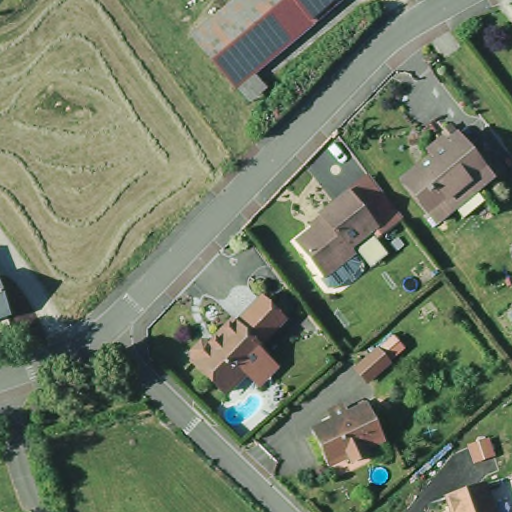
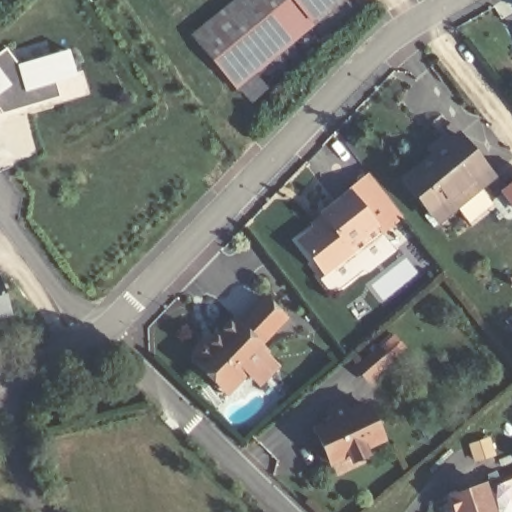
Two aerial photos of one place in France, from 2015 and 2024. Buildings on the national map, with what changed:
unchanged [(240,86),(198,37),(243,0),(344,0),(240,86)]
new [(0,123),(0,54),(6,50),(17,65),(70,50),(77,74),(83,71),(89,94),(7,118),(0,123)]
unchanged [(460,204),(439,220),(407,179),(441,153),(436,147),(452,135),(457,141),(465,135),(479,151),(490,165),(497,175),(460,204)]
new [(370,172),(405,217),(385,233),(378,226),(349,189),(370,172)]
new [(502,193),(512,185),(512,206),(502,193)]
unchanged [(324,223),(319,215),(349,189),(378,226),(353,246),(359,252),(330,280),(301,244),(324,223)]
unchanged [(0,317),(0,279),(12,313),(0,317)]
unchanged [(235,333),(260,306),(282,326),(256,353),(235,333)]
unchanged [(247,375),(227,396),(194,365),(192,360),(192,355),(199,349),(205,347),(210,349),(230,329),(235,333),(256,353),(262,358),(274,367),(257,385),(247,375)]
unchanged [(85,391),(80,375),(90,371),(96,387),(85,391)]
unchanged [(369,452),(369,456),(365,460),(357,463),(353,461),(351,455),(332,464),(317,431),(336,421),(334,416),(335,411),(340,408),(344,407),(347,409),(350,416),(370,407),(385,440),(367,449),(369,452)]
unchanged [(487,490),(494,512),(455,512),(452,502),(487,490)]

